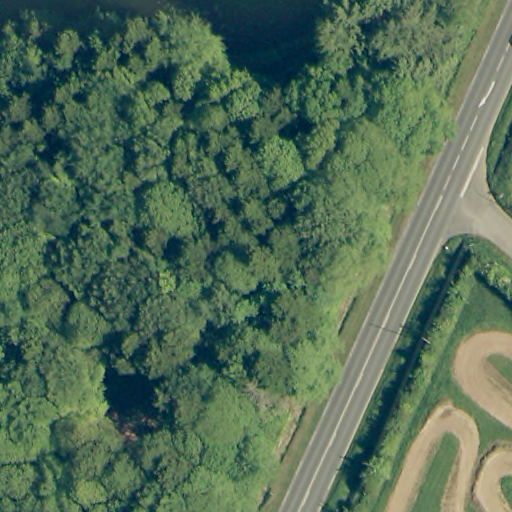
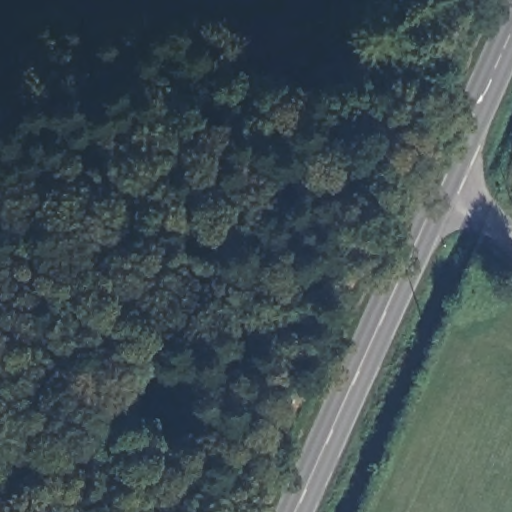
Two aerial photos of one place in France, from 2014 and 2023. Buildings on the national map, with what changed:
[]

